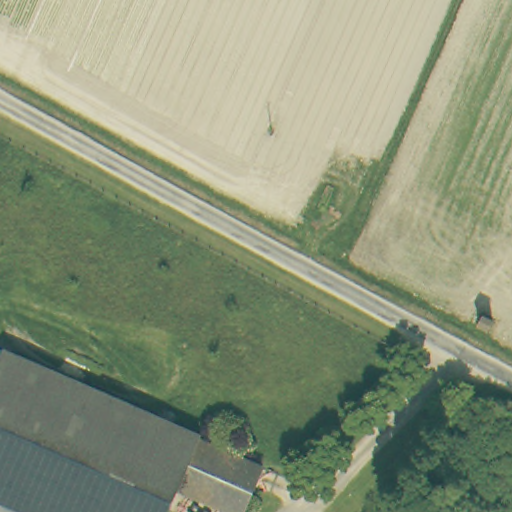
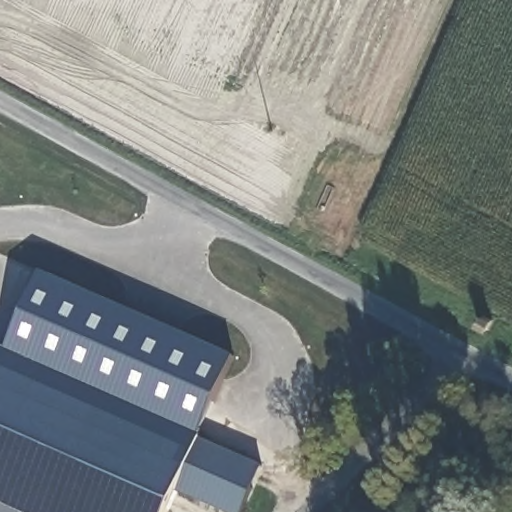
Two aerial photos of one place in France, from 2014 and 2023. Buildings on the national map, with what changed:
new [(233,355),(200,431),(117,395),(7,347),(39,269),(233,355)]
unchanged [(7,347),(0,365),(0,343),(7,347)]
unchanged [(70,451),(43,512),(0,512),(0,365),(7,347),(117,395),(89,458),(70,451)]
unchanged [(183,487),(172,512),(43,512),(70,451),(89,458),(117,395),(206,434),(205,437),(183,487)]
unchanged [(267,465),(248,512),(238,512),(183,487),(205,437),(249,457),(267,465)]
demolished [(249,457),(256,442),(274,450),(267,465),(249,457)]

